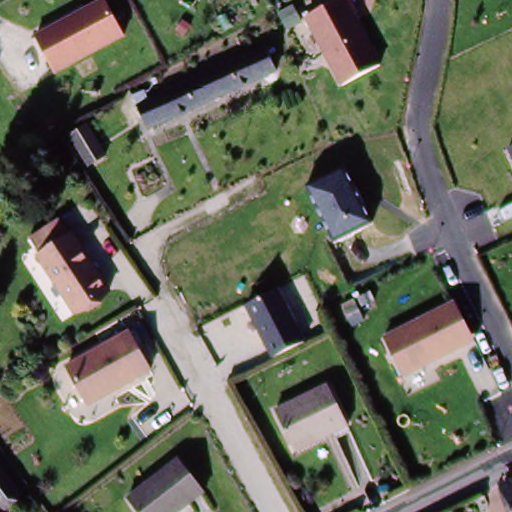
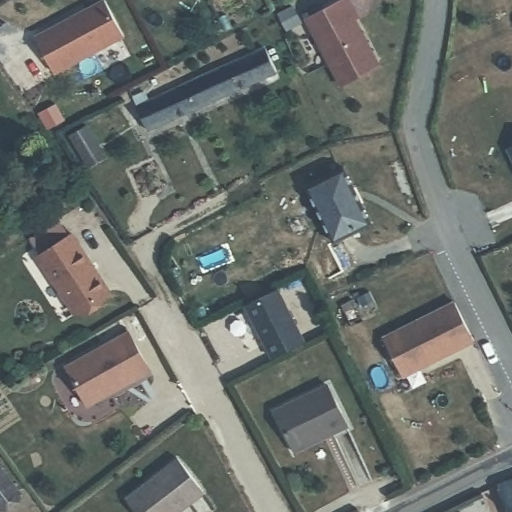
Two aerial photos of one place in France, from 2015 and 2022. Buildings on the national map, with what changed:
unchanged [(55,77),(34,35),(100,0),(104,0),(123,40),(55,77)]
unchanged [(337,0),(344,0),(377,64),(339,87),(305,20),(337,0)]
unchanged [(234,88),(150,127),(134,94),(146,89),(150,99),(275,41),(278,50),(270,54),(277,68),(234,88)]
unchanged [(90,168),(70,137),(86,129),(105,158),(90,168)]
unchanged [(512,148),(512,164),(506,152),(512,148)]
unchanged [(332,241),(305,187),(342,168),(372,222),(332,241)]
unchanged [(107,295),(72,317),(35,261),(39,258),(29,242),(55,225),(66,241),(70,239),(107,295)]
unchanged [(271,355),(243,303),(274,287),(305,341),(271,355)]
unchanged [(478,341),(408,377),(389,338),(460,302),(478,341)]
unchanged [(63,365),(126,330),(147,368),(109,390),(85,403),(83,399),(63,365)]
unchanged [(347,422),(295,447),(275,408),(327,382),(347,422)]
unchanged [(175,512),(143,512),(130,495),(177,457),(203,490),(175,512)]
unchanged [(18,494),(0,508),(0,470),(18,494)]
unchanged [(512,474),(512,504),(502,477),(512,474)]

